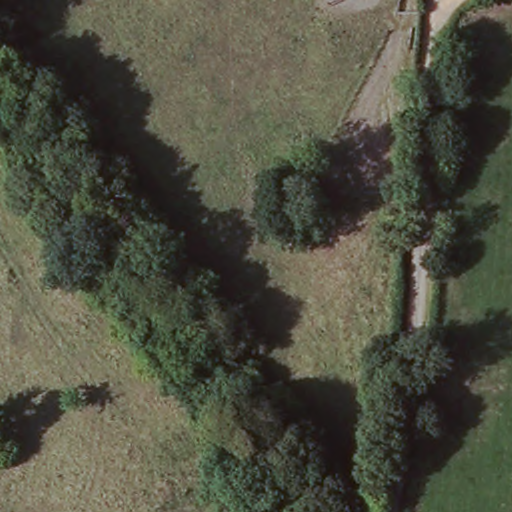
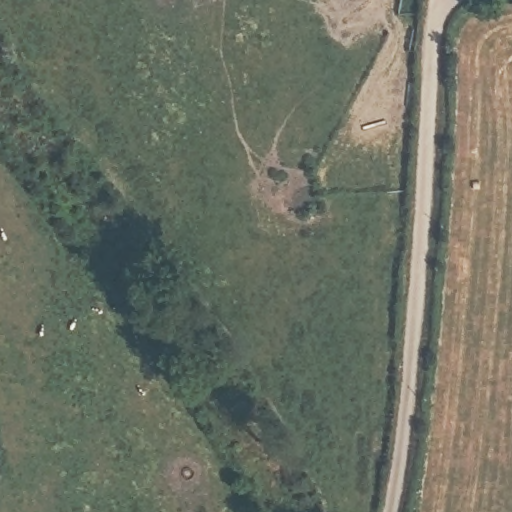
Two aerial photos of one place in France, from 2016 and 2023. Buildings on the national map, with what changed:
[]

